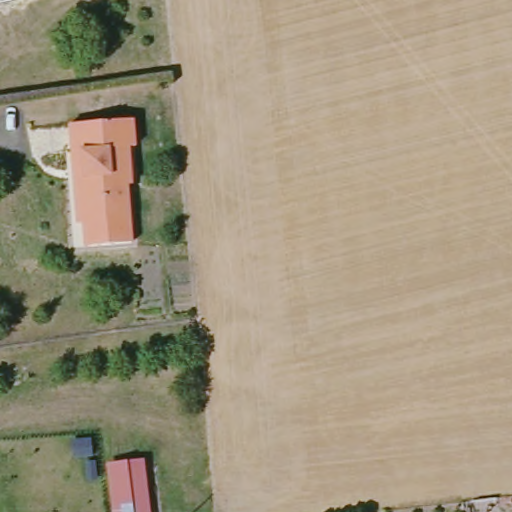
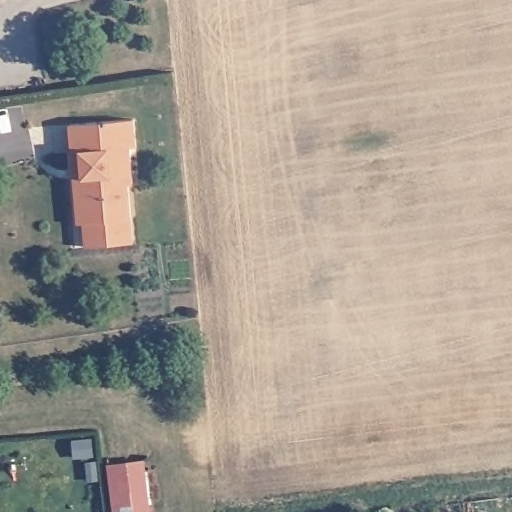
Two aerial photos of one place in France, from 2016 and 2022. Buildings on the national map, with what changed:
unchanged [(80,225),(74,225),(72,154),(67,154),(66,123),(132,118),(133,145),(127,145),(130,182),(126,183),(130,244),(89,247),(82,247),(80,225)]
unchanged [(112,469),(144,467),(148,512),(116,512),(112,469)]

